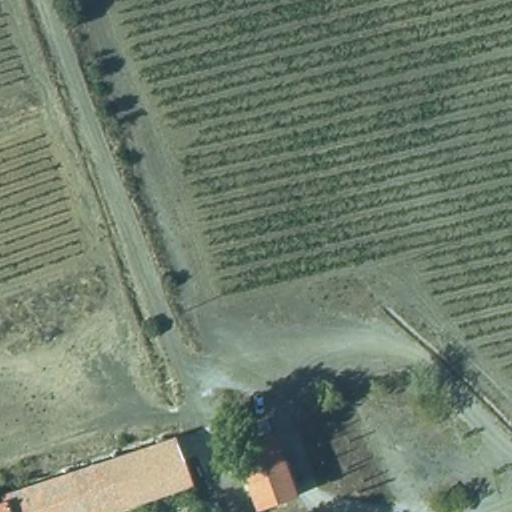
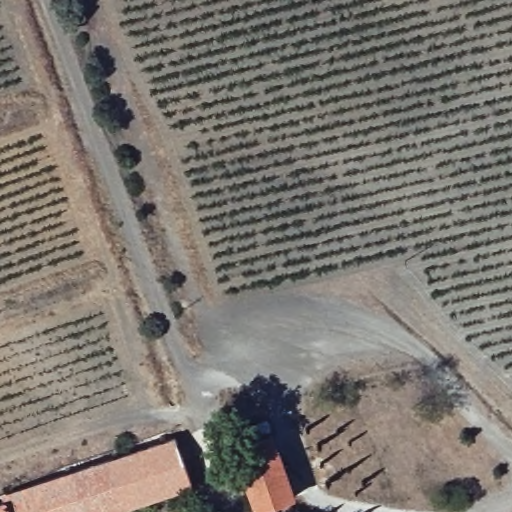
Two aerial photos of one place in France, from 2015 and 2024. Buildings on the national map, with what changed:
unchanged [(270,428),(295,486),(255,500),(231,442),(270,428)]
unchanged [(185,479),(88,512),(0,512),(0,496),(0,491),(167,432),(185,479)]

